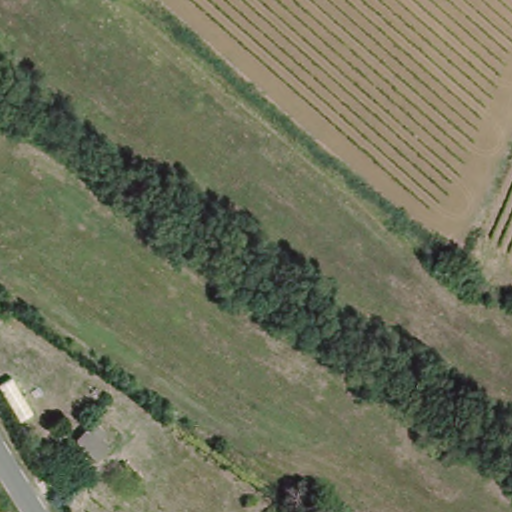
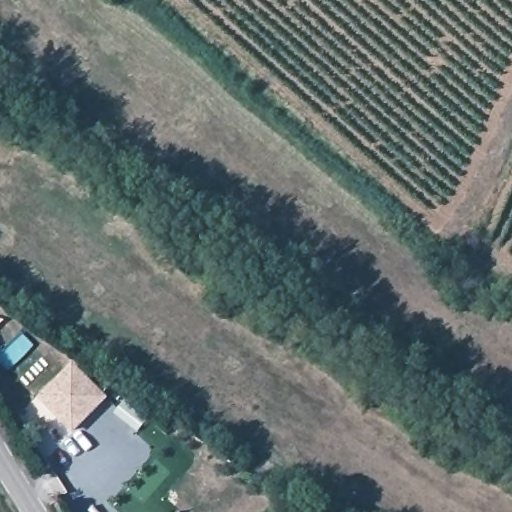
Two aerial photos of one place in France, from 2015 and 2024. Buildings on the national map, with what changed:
new [(109,398),(76,433),(41,399),(74,365),(109,398)]
demolished [(83,427),(104,447),(92,460),(72,440),(83,427)]

